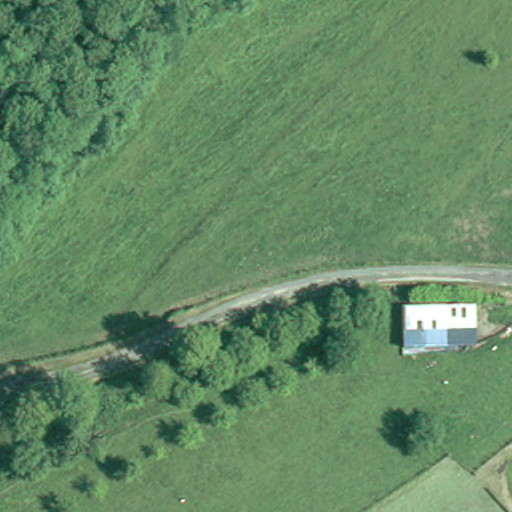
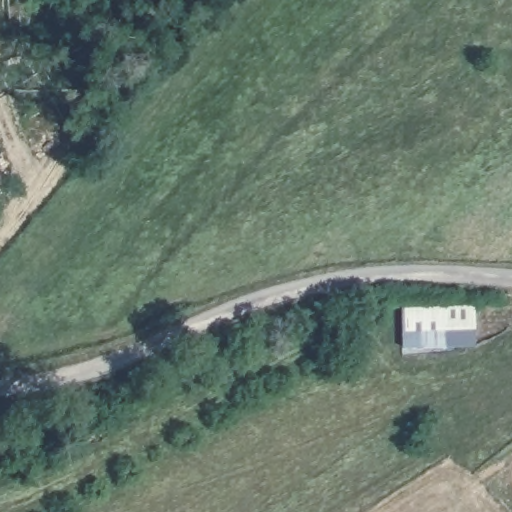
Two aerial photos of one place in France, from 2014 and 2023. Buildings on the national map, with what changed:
unchanged [(482,345),(409,350),(405,304),(482,303),(482,345)]

